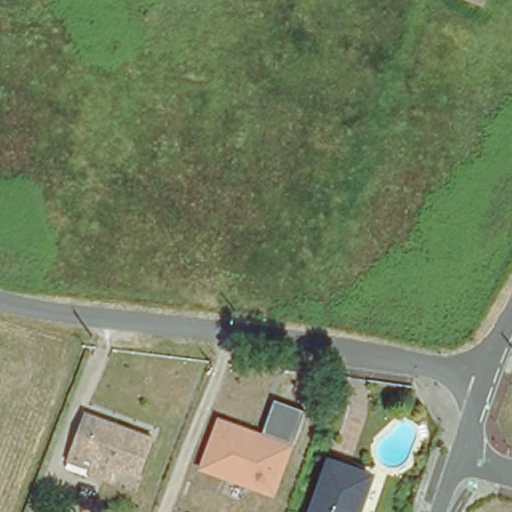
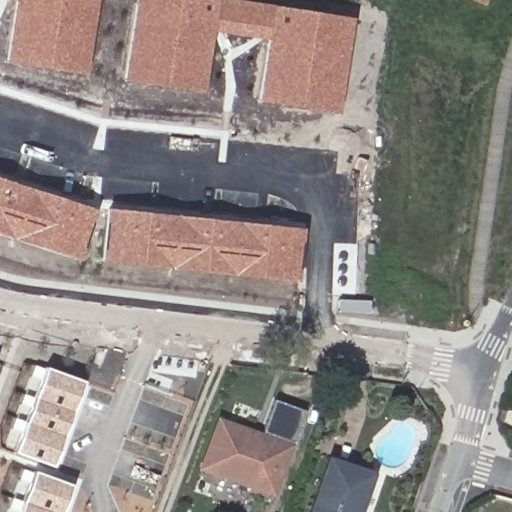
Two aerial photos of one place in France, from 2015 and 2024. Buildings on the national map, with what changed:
new [(4,63),(14,1),(3,0),(97,0),(86,75),(4,63)]
new [(257,102),(266,41),(212,32),(202,94),(122,81),(135,0),(237,0),(352,18),(337,115),(257,102)]
unchanged [(477,0),(483,0),(482,2),(477,0)]
new [(0,236),(0,179),(30,189),(30,191),(96,210),(79,262),(0,236)]
new [(100,261),(106,208),(302,229),(298,282),(202,273),(100,261)]
new [(14,453),(45,369),(82,383),(51,466),(14,453)]
unchanged [(262,440),(275,401),(304,410),(287,449),(262,440)]
demolished [(100,460),(75,451),(89,414),(157,439),(144,477),(120,468),(115,481),(94,473),(96,470),(100,460)]
unchanged [(262,440),(287,449),(272,491),(204,466),(220,425),(262,440)]
unchanged [(330,462),(369,476),(357,512),(311,512),(330,462)]
new [(33,473),(70,486),(60,512),(19,512),(33,473)]

